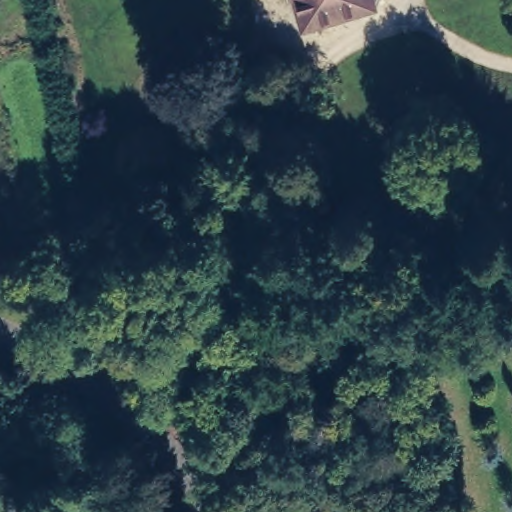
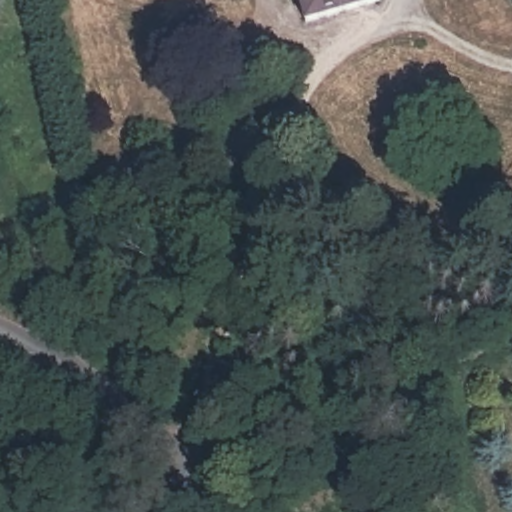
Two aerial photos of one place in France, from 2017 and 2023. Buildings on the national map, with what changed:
unchanged [(304,0),(380,0),(311,21),(304,0)]

